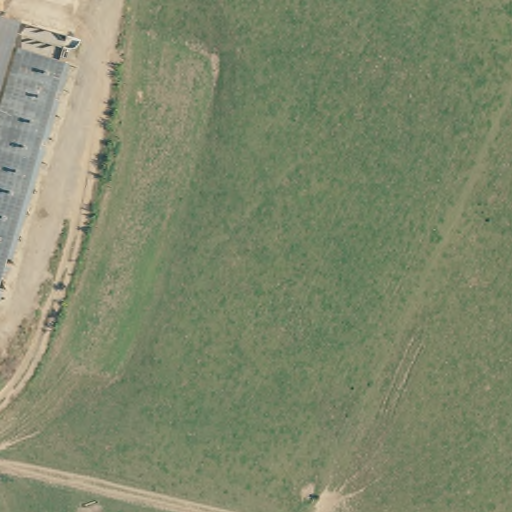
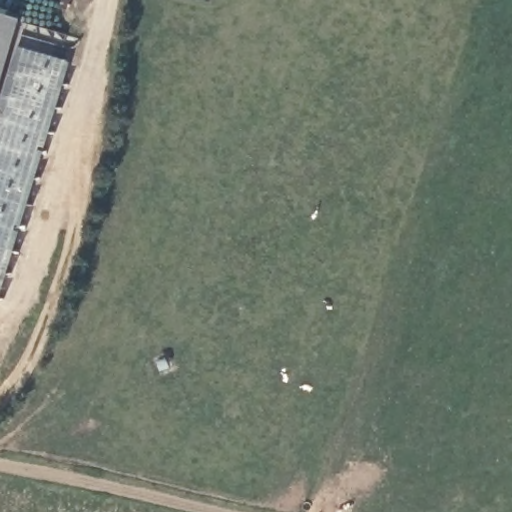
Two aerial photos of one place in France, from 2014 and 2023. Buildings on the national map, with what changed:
unchanged [(19,19),(0,84),(0,14),(19,19)]
unchanged [(0,277),(0,112),(19,48),(65,60),(0,277)]

